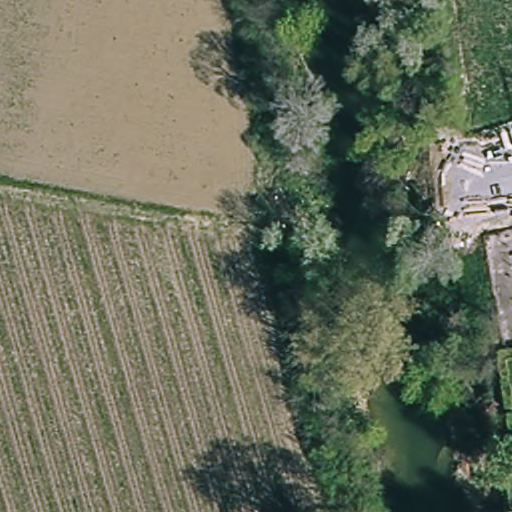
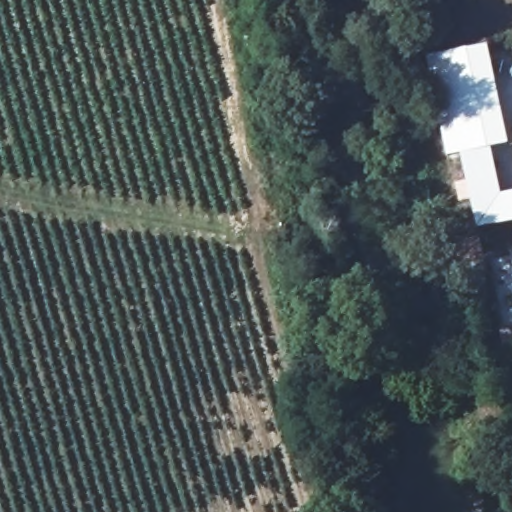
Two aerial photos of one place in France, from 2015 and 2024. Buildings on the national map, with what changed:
new [(505,118),(487,122),(492,146),(464,155),(462,152),(449,155),(445,134),(427,56),(487,44),(505,118)]
new [(502,192),(512,190),(512,223),(480,230),(464,155),(492,146),(502,192)]

